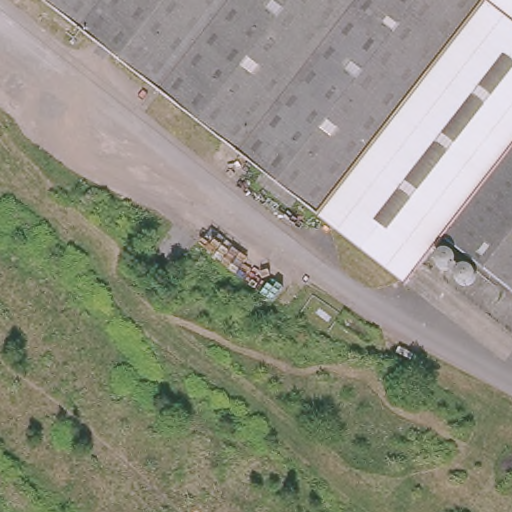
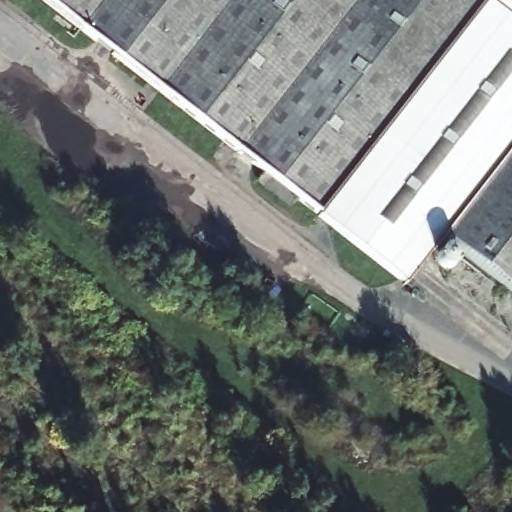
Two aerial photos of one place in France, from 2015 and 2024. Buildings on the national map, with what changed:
unchanged [(475,0),(317,209),(316,209),(41,0),(475,0)]
unchanged [(408,277),(317,209),(475,0),(490,0),(512,21),(512,141),(445,229),(408,277)]
unchanged [(512,0),(512,21),(490,0),(512,0)]
unchanged [(512,141),(512,279),(445,229),(512,141)]

